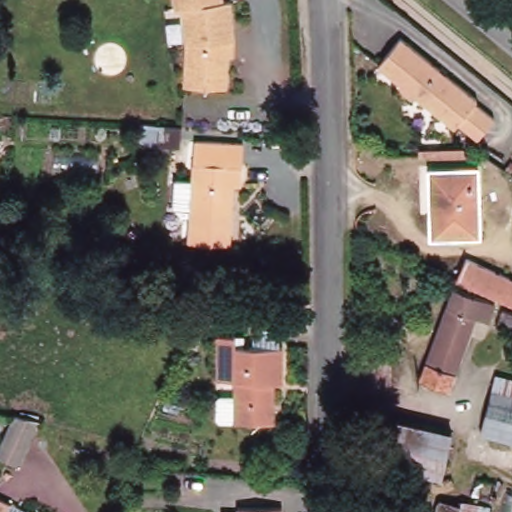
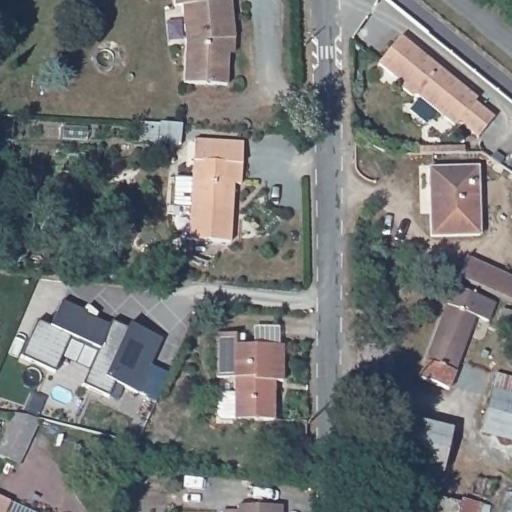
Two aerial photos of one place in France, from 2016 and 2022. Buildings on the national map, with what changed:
unchanged [(222,1),(229,1),(234,40),(228,40),(227,86),(184,85),(184,42),(181,7),(174,8),(173,0),(222,0),(222,1)]
unchanged [(479,94),(476,97),(496,112),(494,115),(479,134),(459,118),(456,122),(418,92),(412,93),(402,85),(401,79),(379,60),(398,37),(401,32),(479,94)]
unchanged [(177,125),(180,125),(179,146),(138,144),(139,123),(177,125)]
unchanged [(242,165),(240,185),(234,185),(229,244),(188,240),(193,161),(194,140),(203,140),(243,143),(242,165)]
unchanged [(421,141),(466,141),(466,146),(449,146),(421,146),(421,141)]
unchanged [(473,174),(474,240),(427,241),(425,175),(473,174)]
unchanged [(463,260),(512,281),(512,301),(511,303),(454,278),(463,260)]
unchanged [(491,304),(484,322),(472,317),(444,390),(416,379),(449,288),(491,304)]
new [(37,321),(54,330),(66,304),(111,325),(113,323),(129,330),(130,325),(164,340),(139,395),(116,384),(109,399),(83,387),(99,351),(72,339),(56,375),(20,358),(37,321)]
unchanged [(512,314),(512,350),(506,348),(510,332),(493,326),(498,310),(512,314)]
unchanged [(231,335),(231,346),(279,347),(278,382),(265,382),(265,390),(270,390),(269,421),(229,421),(230,380),(213,380),(214,335),(231,335)]
unchanged [(390,340),(391,390),(358,391),(357,340),(390,340)]
unchanged [(506,437),(481,430),(495,375),(512,380),(512,439),(506,437)]
unchanged [(19,466),(0,457),(0,447),(15,415),(39,421),(19,466)]
unchanged [(407,422),(408,419),(462,432),(452,473),(439,470),(433,493),(378,480),(392,418),(407,422)]
unchanged [(458,512),(435,512),(439,494),(461,500),(458,512)]
unchanged [(486,512),(459,512),(464,495),(489,501),(486,512)]
unchanged [(27,512),(0,512),(0,500),(6,502),(27,512)]
unchanged [(283,508),(283,512),(237,512),(237,508),(283,508)]

